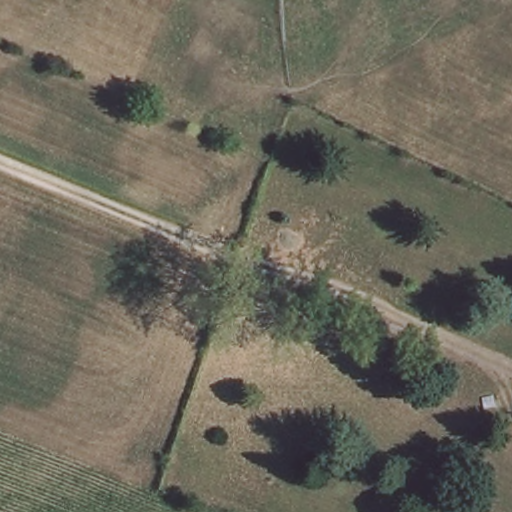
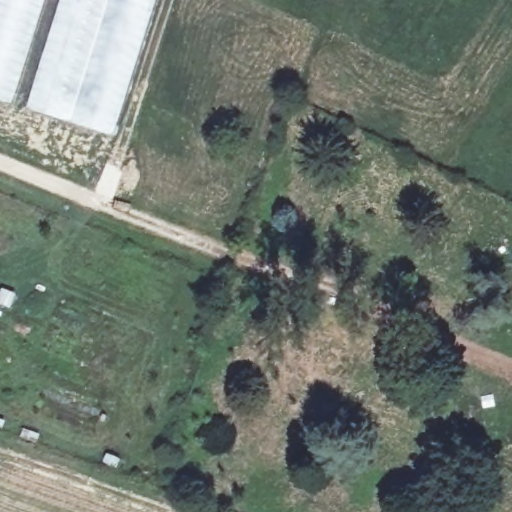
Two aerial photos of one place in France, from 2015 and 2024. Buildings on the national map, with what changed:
new [(12,104),(0,100),(0,0),(45,0),(12,104)]
new [(59,0),(156,0),(113,136),(26,108),(59,0)]

